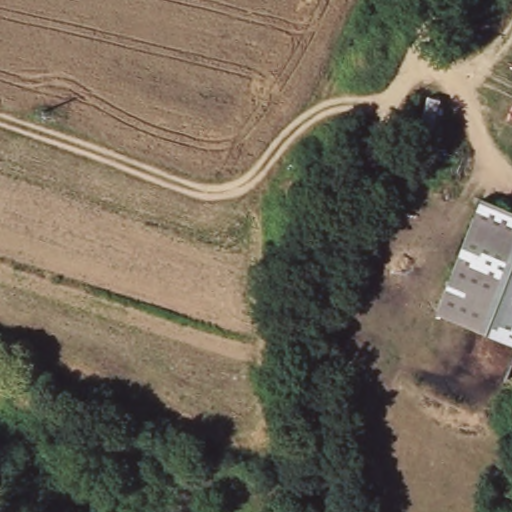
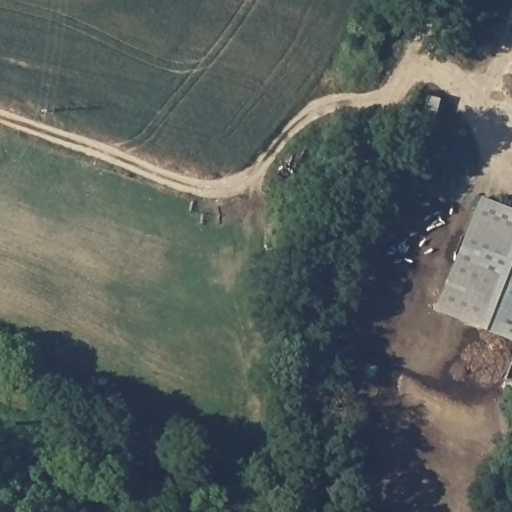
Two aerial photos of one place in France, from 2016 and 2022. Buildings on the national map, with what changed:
unchanged [(512,214),(512,342),(439,307),(490,203),(512,214)]

